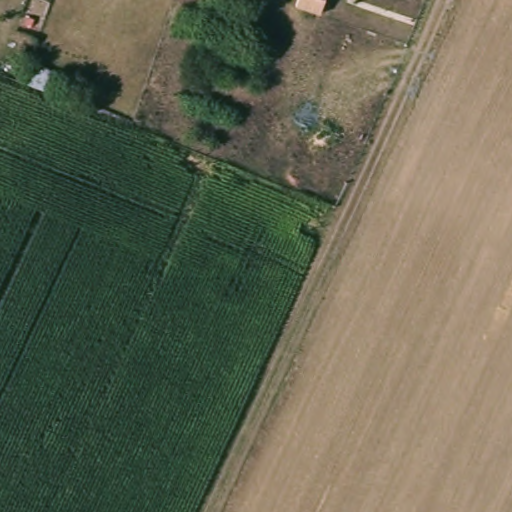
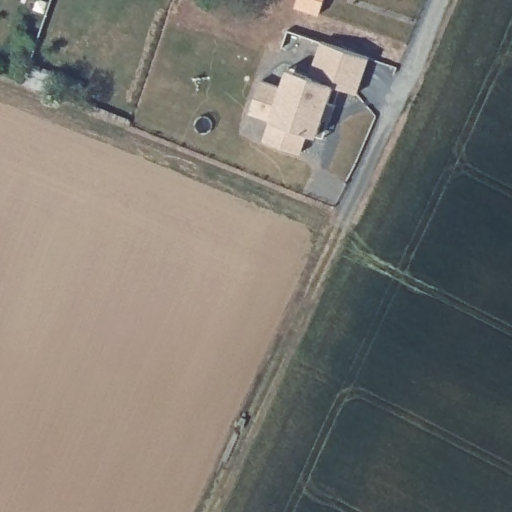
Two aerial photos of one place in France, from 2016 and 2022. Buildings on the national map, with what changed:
unchanged [(315,9),(291,1),(292,0),(318,0),(315,9)]
new [(257,76),(278,83),(285,63),(306,70),(317,35),(365,50),(355,86),(331,79),(326,96),(333,98),(328,115),(321,113),(315,130),(306,127),(299,148),(262,137),(268,116),(247,109),(257,76)]

